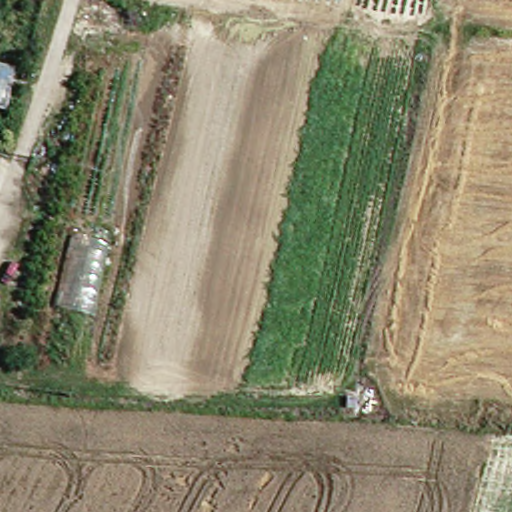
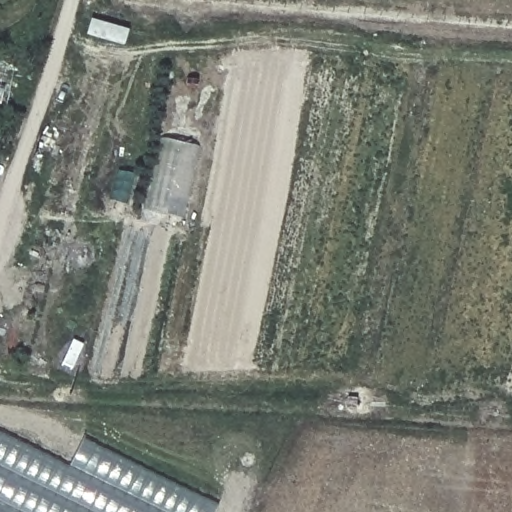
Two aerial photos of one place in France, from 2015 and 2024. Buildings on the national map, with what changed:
new [(0,99),(0,102),(0,74),(13,76),(11,85),(8,101),(0,99)]
new [(85,435),(217,502),(213,512),(0,512),(0,426),(70,464),(85,435)]

